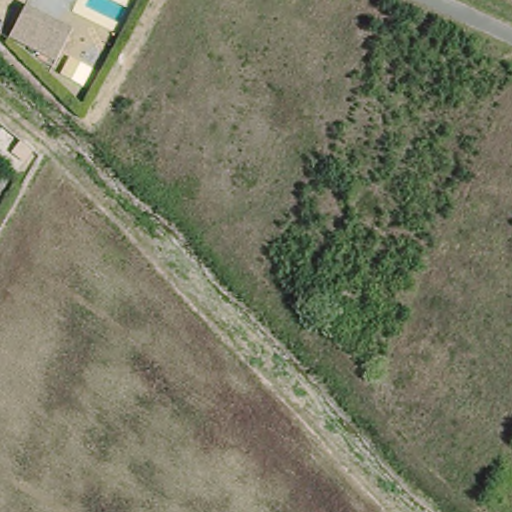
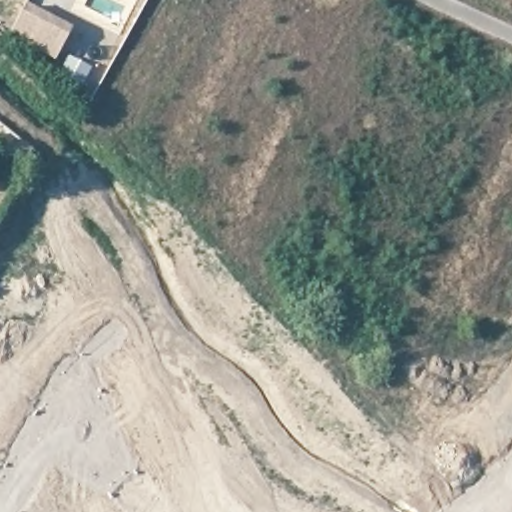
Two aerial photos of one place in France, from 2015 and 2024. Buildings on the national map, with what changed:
unchanged [(30,5),(74,29),(57,60),(12,36),(30,5)]

